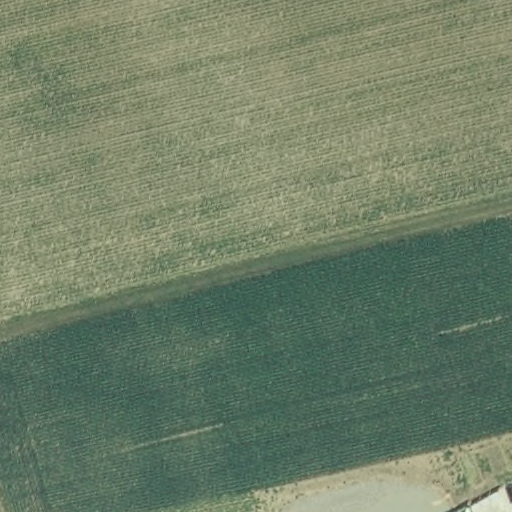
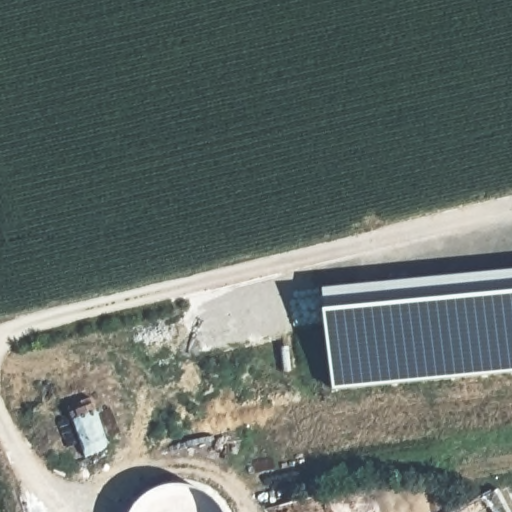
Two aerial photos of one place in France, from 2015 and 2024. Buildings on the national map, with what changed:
new [(323,287),(512,267),(512,372),(333,390),(323,287)]
new [(95,409),(110,447),(85,457),(71,419),(95,409)]

